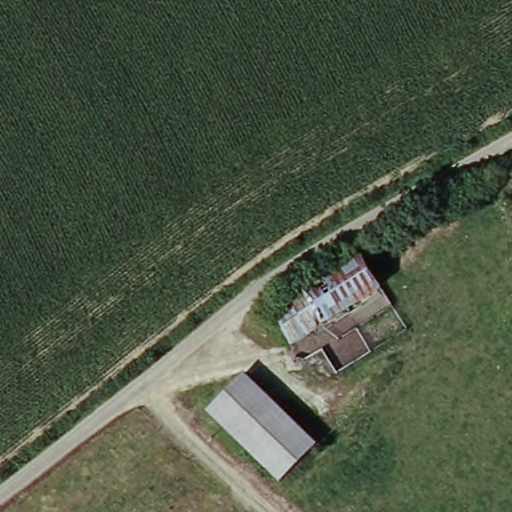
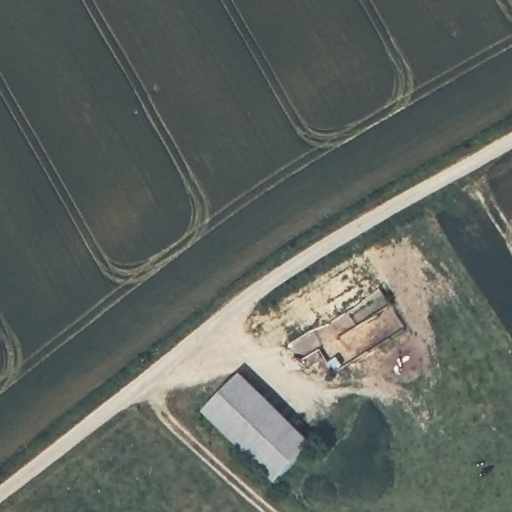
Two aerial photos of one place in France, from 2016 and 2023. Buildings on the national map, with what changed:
unchanged [(359,256),(381,290),(305,336),(290,345),(270,312),(285,302),(359,256)]
unchanged [(243,380),(314,451),(279,487),(208,415),(243,380)]

